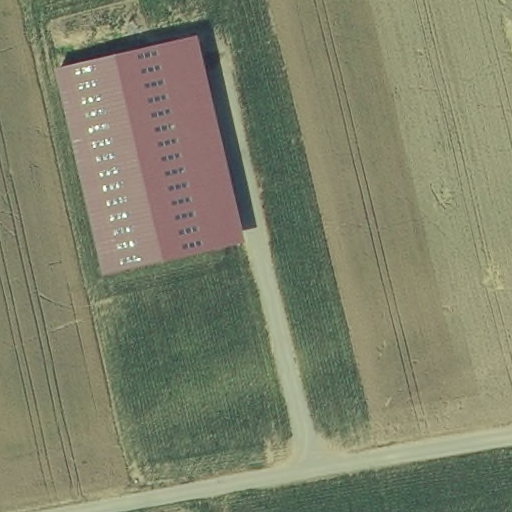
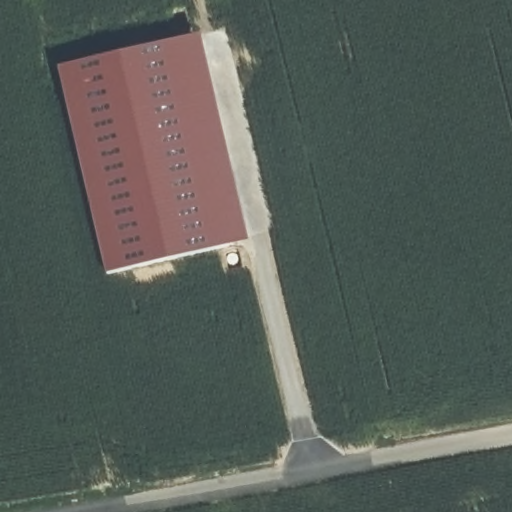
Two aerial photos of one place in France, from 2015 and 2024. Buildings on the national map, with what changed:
unchanged [(75,63),(198,37),(245,241),(123,270),(75,63)]

